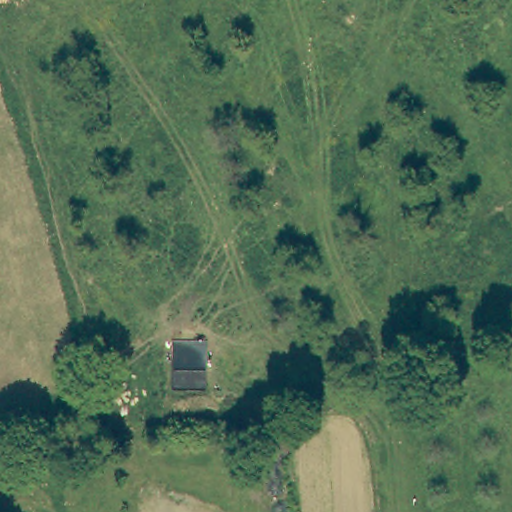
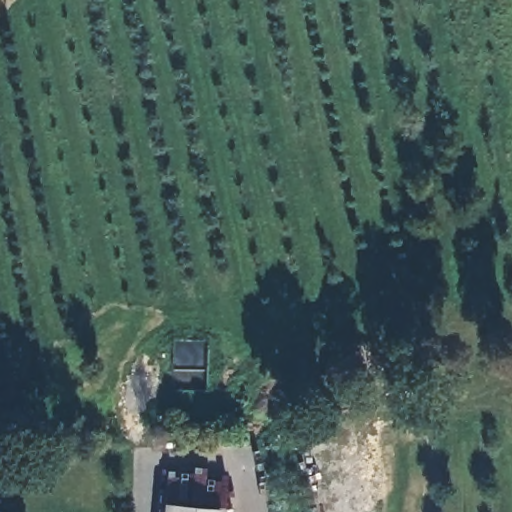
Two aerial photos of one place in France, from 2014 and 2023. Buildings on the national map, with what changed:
new [(163,502),(221,508),(221,512),(161,512),(163,502)]

